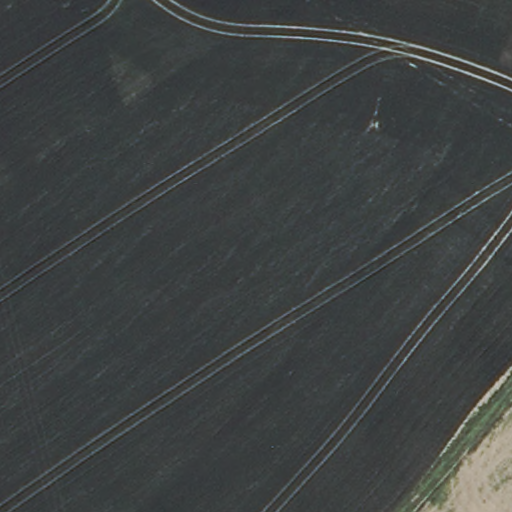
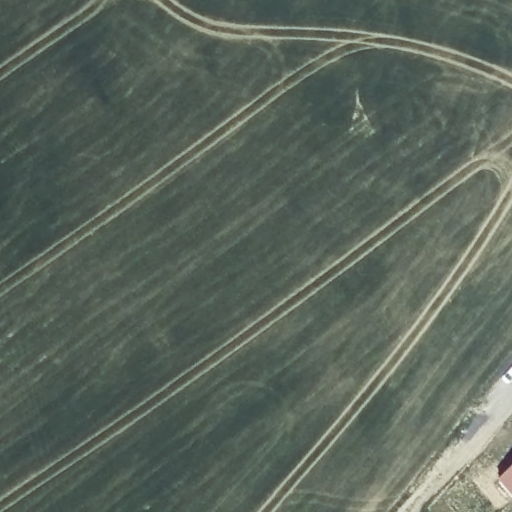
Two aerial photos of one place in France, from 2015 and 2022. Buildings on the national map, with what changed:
new [(512,471),(512,496),(499,482),(512,471)]

